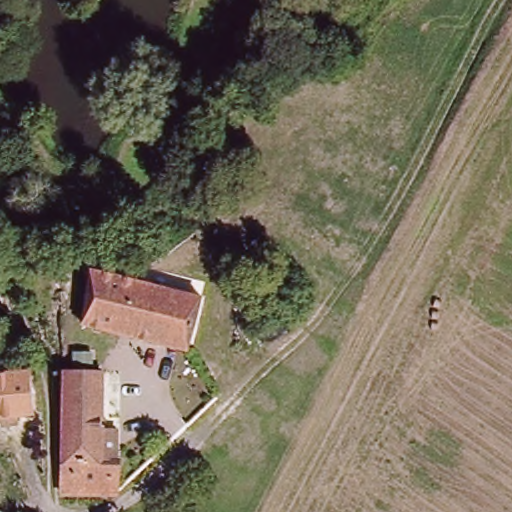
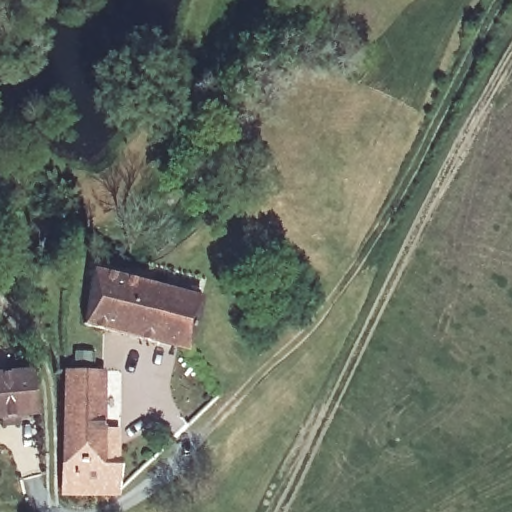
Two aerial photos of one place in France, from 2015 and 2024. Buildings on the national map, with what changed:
unchanged [(187,291),(197,292),(187,337),(87,315),(97,269),(187,291)]
unchanged [(65,360),(102,360),(102,411),(118,411),(119,461),(119,487),(114,491),(62,490),(65,401),(65,360)]
unchanged [(0,369),(33,367),(35,408),(0,412),(0,369)]

